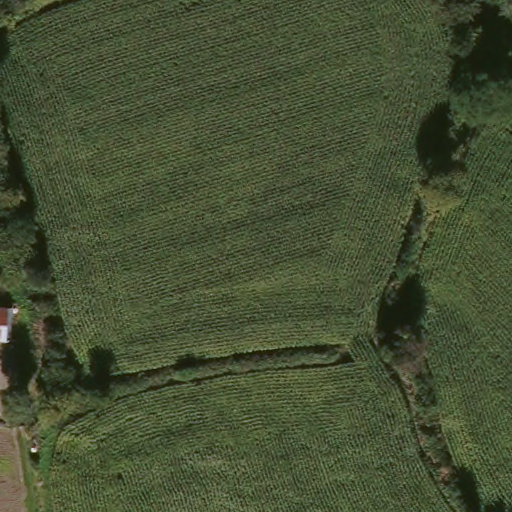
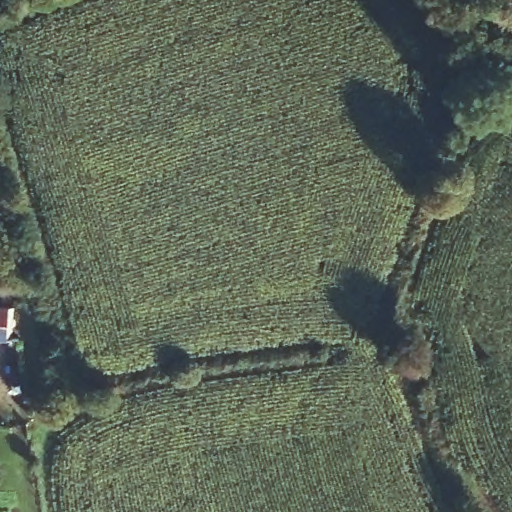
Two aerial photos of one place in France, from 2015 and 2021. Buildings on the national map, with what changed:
unchanged [(6,343),(0,343),(0,312),(8,312),(6,343)]

